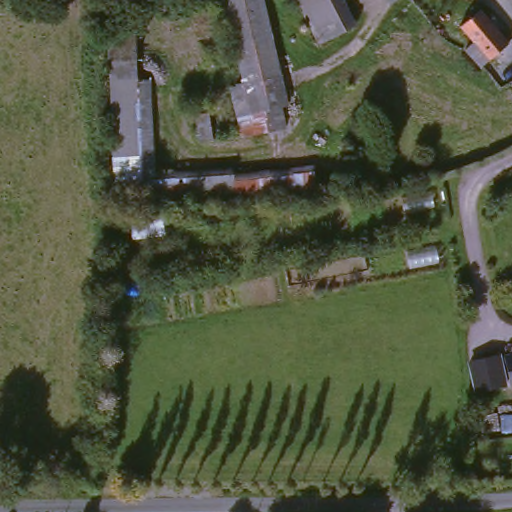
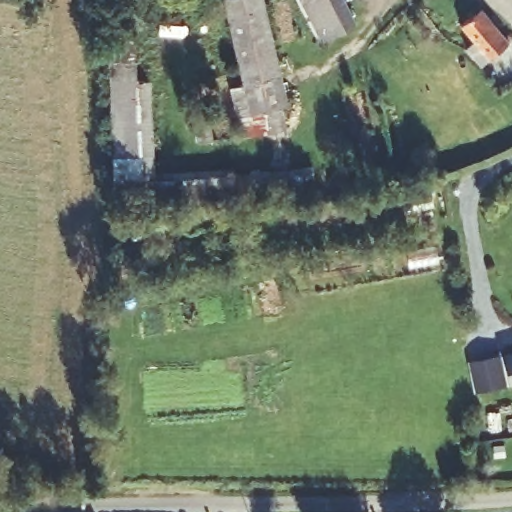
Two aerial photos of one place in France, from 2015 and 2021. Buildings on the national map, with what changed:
unchanged [(351,30),(316,47),(287,0),(334,0),(351,30)]
unchanged [(261,11),(284,129),(228,143),(221,94),(236,89),(220,21),(261,11)]
unchanged [(509,51),(488,65),(481,68),(468,54),(476,48),(464,32),(479,21),(484,17),(509,51)]
unchanged [(112,80),(114,29),(141,29),(140,78),(143,161),(109,162),(105,80),(112,80)]
unchanged [(310,175),(311,200),(161,205),(159,182),(310,175)]
unchanged [(501,361),(512,358),(512,384),(509,385),(501,361)]
unchanged [(480,370),(479,366),(498,362),(498,365),(504,388),(486,392),(480,370)]

